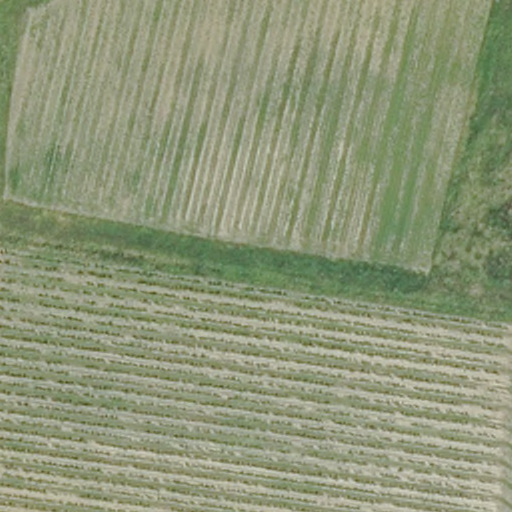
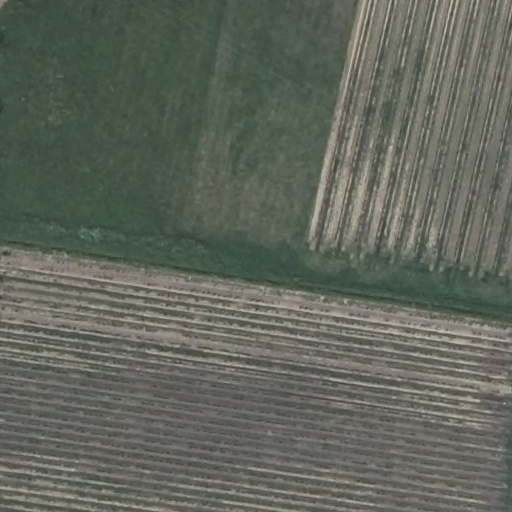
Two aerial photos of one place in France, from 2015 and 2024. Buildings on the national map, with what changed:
[]

